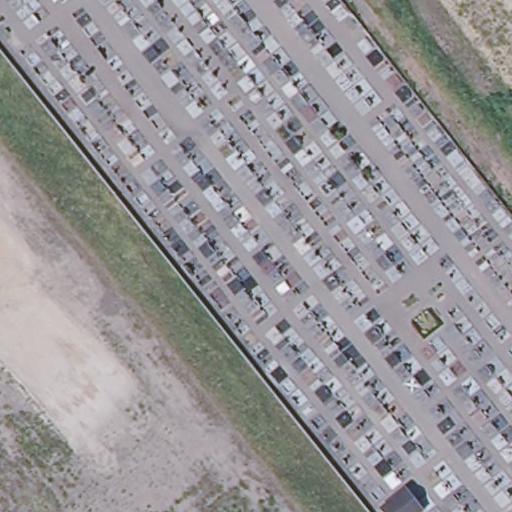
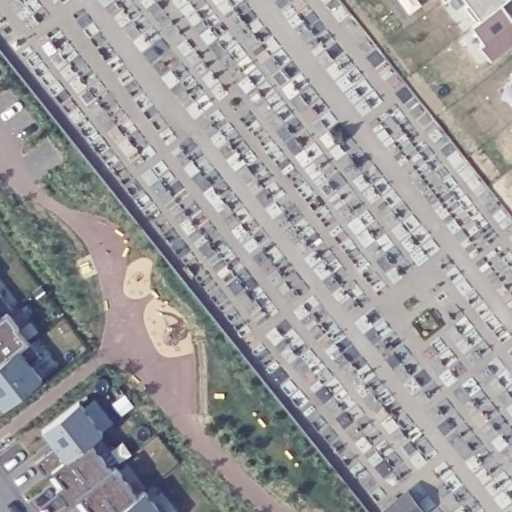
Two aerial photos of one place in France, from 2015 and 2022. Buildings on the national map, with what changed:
new [(478,22),(466,7),(470,4),(467,0),(506,0),(478,22)]
new [(480,44),(484,40),(473,26),(506,0),(512,0),(512,43),(492,59),(480,44)]
new [(12,309),(6,312),(41,358),(31,365),(41,379),(7,404),(0,395),(0,295),(12,309)]
new [(53,471),(46,477),(35,462),(55,447),(42,431),(79,402),(103,432),(53,471)]
new [(53,471),(90,442),(112,471),(68,506),(56,490),(63,484),(53,471)]
new [(116,468),(139,497),(119,512),(87,512),(90,510),(79,497),(116,468)]
unchanged [(423,510),(420,512),(383,512),(382,511),(407,490),(423,510)]
new [(160,512),(119,512),(139,497),(138,497),(144,492),(160,512)]

